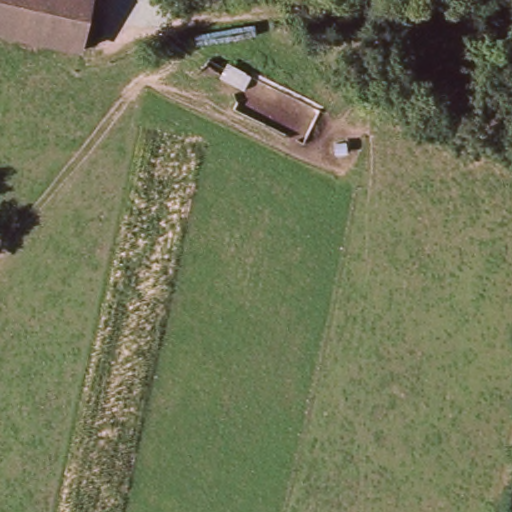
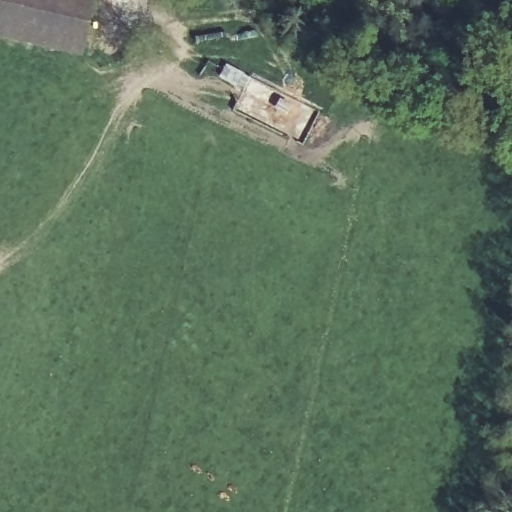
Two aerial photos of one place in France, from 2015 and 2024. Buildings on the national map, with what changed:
unchanged [(79,50),(0,33),(0,0),(90,0),(79,50)]

